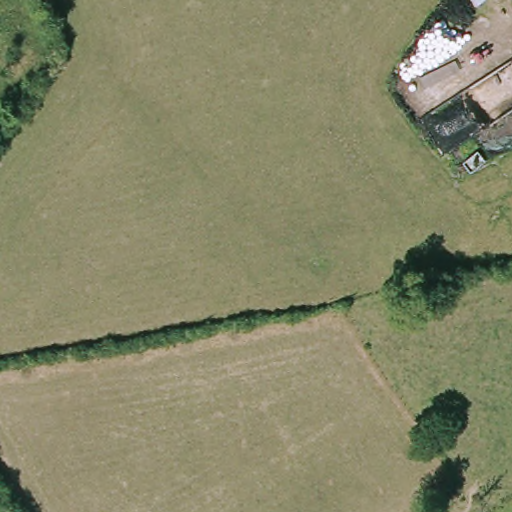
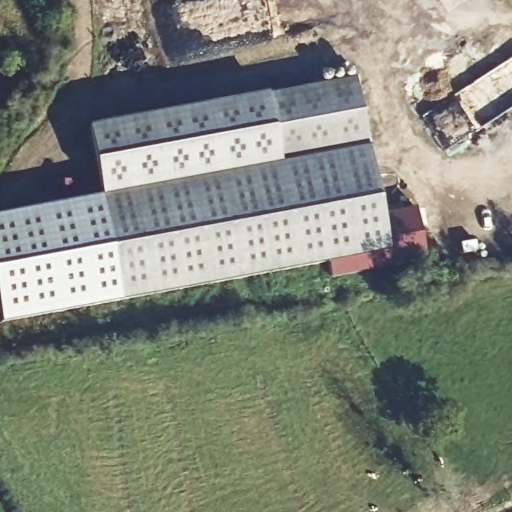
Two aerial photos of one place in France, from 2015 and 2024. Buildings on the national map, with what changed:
new [(87,135),(85,126),(353,79),(353,84),(87,135)]
new [(401,217),(415,214),(424,265),(329,284),(326,268),(120,308),(87,135),(353,84),(378,214),(400,210),(401,217)]
new [(119,302),(0,325),(0,214),(99,197),(119,302)]

